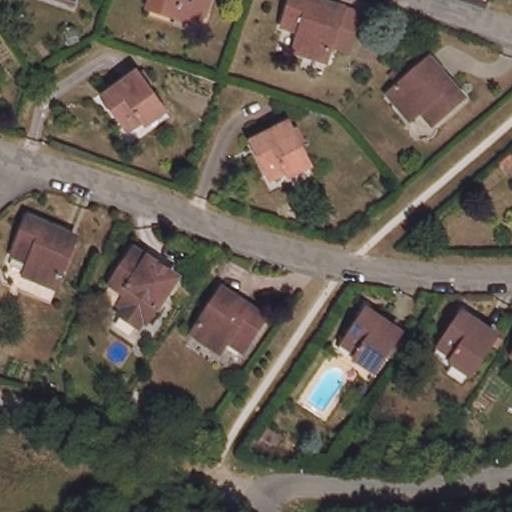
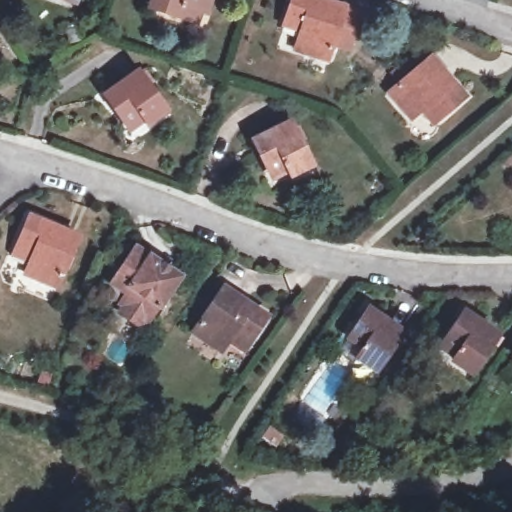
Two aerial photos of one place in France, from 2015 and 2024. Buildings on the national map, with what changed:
unchanged [(75,1),(70,0),(75,0),(75,1)]
unchanged [(177,15),(152,6),(154,0),(209,0),(205,11),(200,10),(197,21),(177,15)]
unchanged [(335,44),(330,60),(297,49),(303,30),(285,24),(293,0),(322,0),(362,14),(353,42),(350,49),(335,44)]
unchanged [(397,91),(400,89),(393,81),(427,52),(435,60),(437,58),(470,97),(445,119),(435,106),(420,119),(397,91)]
unchanged [(120,122),(100,95),(134,71),(161,110),(142,122),(135,111),(120,122)]
unchanged [(270,165),(255,135),(292,117),(313,159),(292,170),(286,157),(270,165)]
unchanged [(503,161),(512,154),(512,166),(509,169),(503,161)]
unchanged [(33,254),(17,247),(30,217),(78,236),(57,287),(25,274),(33,254)]
unchanged [(123,313),(126,309),(128,306),(122,302),(133,285),(118,275),(137,247),(180,277),(150,321),(148,324),(144,321),(142,325),(123,313)]
unchanged [(268,317),(250,345),(234,335),(223,351),(195,332),(211,308),(202,303),(210,292),(218,298),(225,287),(268,317)]
unchanged [(360,348),(345,337),(365,308),(390,325),(399,331),(407,337),(400,346),(392,340),(373,370),(365,364),(354,357),(360,348)]
unchanged [(444,341),(463,312),(500,336),(498,338),(504,342),(500,349),(494,345),(473,375),(452,360),(459,351),(444,341)]
unchanged [(512,363),(512,365),(511,365),(512,363)]
unchanged [(281,435),(276,444),(263,435),(268,427),(281,435)]

